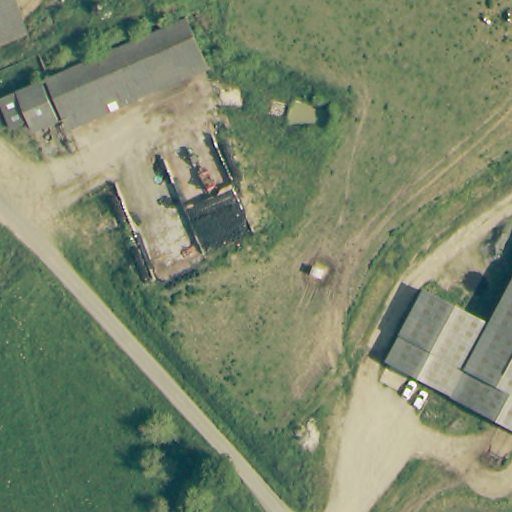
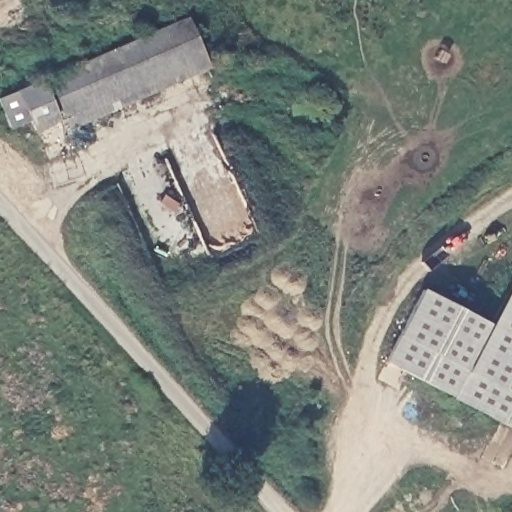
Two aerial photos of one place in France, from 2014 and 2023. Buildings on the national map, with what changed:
unchanged [(27,35),(0,44),(0,0),(15,0),(27,35)]
unchanged [(67,130),(54,91),(49,79),(121,49),(122,51),(173,26),(186,21),(206,70),(202,71),(67,130)]
unchanged [(58,122),(31,134),(27,124),(8,131),(4,120),(0,112),(0,100),(42,82),(47,95),(58,122)]
unchanged [(512,283),(512,430),(387,362),(425,290),(490,324),(512,283)]

